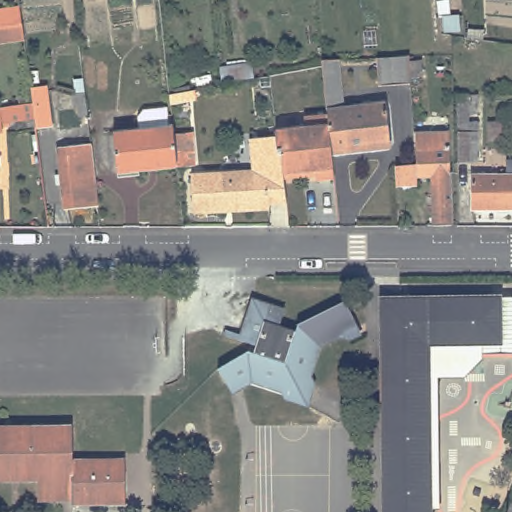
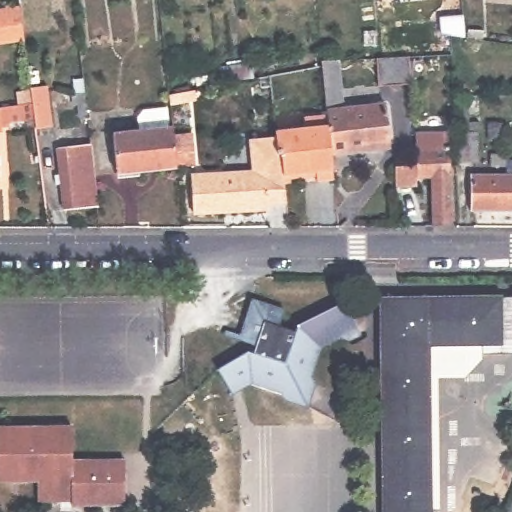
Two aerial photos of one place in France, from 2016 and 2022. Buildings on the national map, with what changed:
unchanged [(24,7),(26,25),(29,42),(12,43),(0,45),(0,9),(24,7)]
unchanged [(376,54),(410,52),(410,58),(421,57),(422,69),(418,69),(418,76),(411,76),(411,82),(378,83),(376,54)]
unchanged [(252,60),(255,77),(220,83),(218,66),(252,60)]
unchanged [(347,107),(389,103),(393,149),(335,155),(332,115),(327,65),(326,62),(330,62),(342,61),(347,107)]
unchanged [(10,134),(0,134),(0,109),(37,104),(35,88),(50,86),(55,126),(40,128),(39,120),(10,123),(10,134)]
unchanged [(199,98),(175,103),(174,92),(199,88),(199,98)]
unchanged [(473,94),(476,121),(483,121),(484,160),(462,160),(461,95),(473,94)]
unchanged [(117,134),(145,132),(142,113),(176,111),(177,128),(178,134),(194,132),(197,166),(181,167),(119,173),(117,134)]
unchanged [(400,190),(399,167),(420,164),(419,154),(418,133),(417,113),(418,113),(452,112),(455,226),(437,226),(436,177),(420,178),(420,189),(400,190)]
unchanged [(321,180),(319,171),(286,174),(284,152),(281,152),(279,139),(278,130),(306,127),(306,117),(332,115),(335,155),(337,179),(321,180)]
unchanged [(271,205),(271,212),(197,213),(197,176),(253,175),(253,138),(279,139),(281,152),(284,152),(286,174),(289,205),(271,205)]
unchanged [(54,174),(60,173),(57,145),(90,142),(95,208),(63,211),(61,184),(56,184),(54,174)]
unchanged [(1,183),(0,183),(0,150),(1,183)]
unchanged [(477,180),(511,181),(511,167),(512,167),(512,216),(476,216),(477,180)]
unchanged [(504,298),(504,344),(486,344),(432,344),(434,510),(434,512),(387,512),(385,298),(504,298)]
unchanged [(315,380),(319,385),(313,407),(291,401),(287,395),(257,387),(236,398),(221,370),(252,353),(259,356),(261,348),(229,338),(231,333),(247,337),(257,303),(289,313),(284,329),(300,333),(301,327),(344,300),(359,325),(364,332),(355,337),(347,334),(324,351),(315,380)]
unchanged [(432,344),(486,344),(486,361),(467,379),(440,379),(442,509),(434,510),(432,344)]
unchanged [(77,432),(78,465),(128,465),(128,510),(76,511),(76,506),(40,506),(40,486),(0,486),(0,432),(77,432)]

